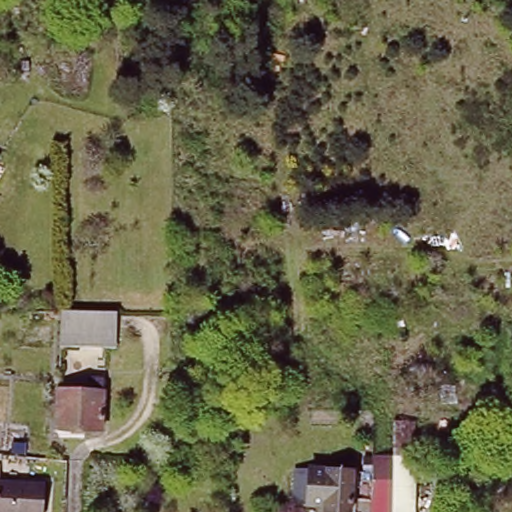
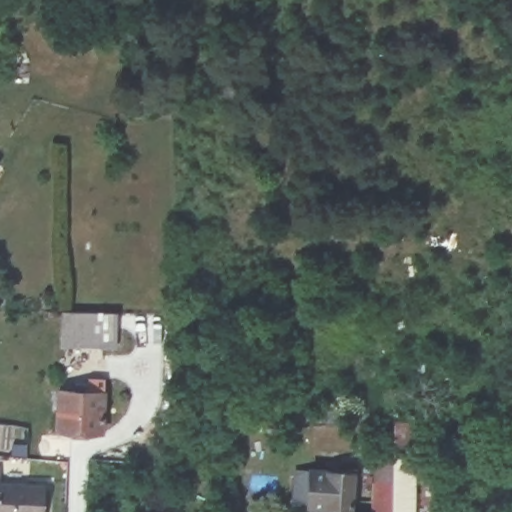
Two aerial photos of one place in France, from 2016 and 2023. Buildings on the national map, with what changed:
unchanged [(117,336),(110,335),(64,334),(65,318),(110,320),(118,320),(117,336)]
unchanged [(56,431),(57,391),(72,391),(72,385),(85,383),(85,380),(102,380),(102,394),(100,434),(56,431)]
unchanged [(352,470),(355,450),(374,452),(371,499),(351,498),(351,512),(327,512),(327,505),(308,503),(310,468),(352,470)]
unchanged [(374,452),(416,455),(415,463),(413,512),(370,512),(371,499),(374,452)]
unchanged [(42,485),(39,512),(0,512),(0,481),(42,485)]

